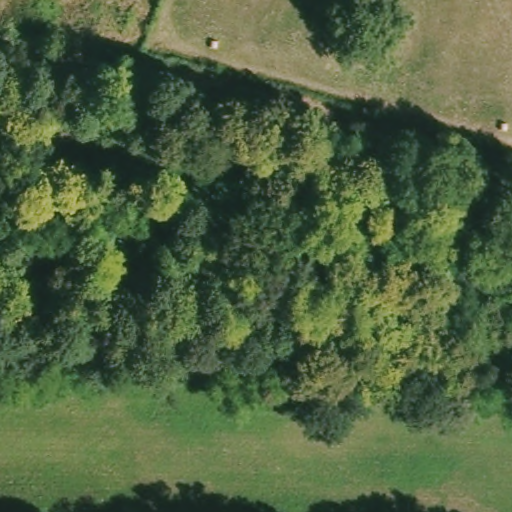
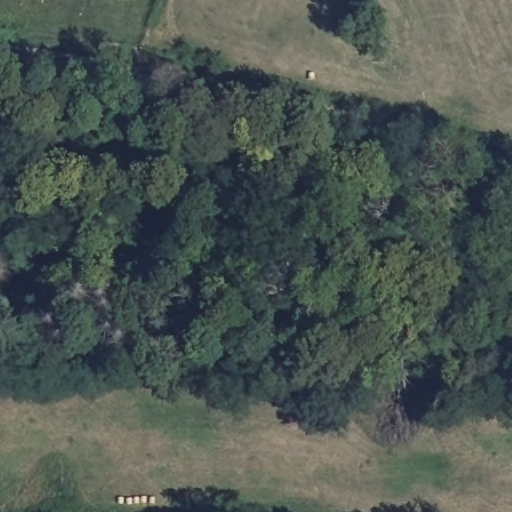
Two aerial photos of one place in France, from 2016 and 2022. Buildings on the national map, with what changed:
[]

